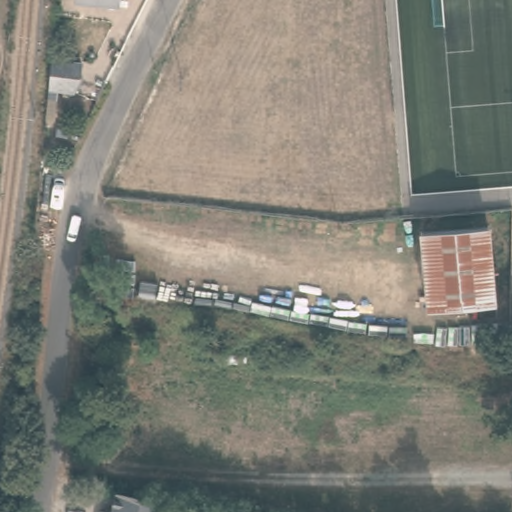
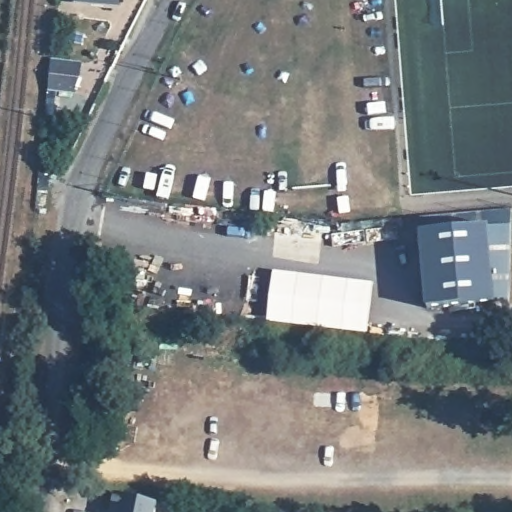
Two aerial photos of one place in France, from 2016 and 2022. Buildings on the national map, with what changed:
unchanged [(119,7),(77,4),(77,0),(119,0),(119,7)]
unchanged [(47,101),(48,91),(51,61),(82,64),(80,78),(74,94),(56,92),(55,101),(47,101)]
unchanged [(489,227),(420,232),(417,216),(511,208),(510,227),(511,298),(495,303),(489,227)]
unchanged [(426,309),(420,232),(489,227),(495,303),(426,309)]
new [(368,335),(213,317),(215,305),(219,279),(246,281),(270,283),(270,272),(373,282),(368,335)]
unchanged [(162,506),(161,512),(115,512),(119,496),(151,503),(162,506)]

